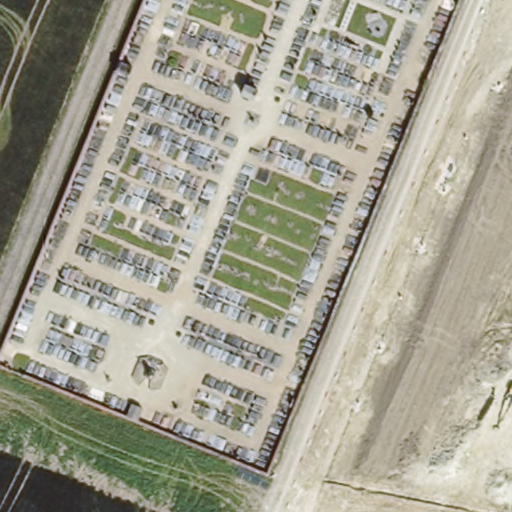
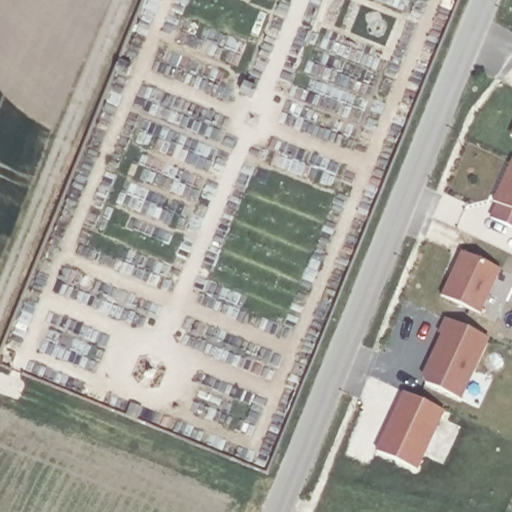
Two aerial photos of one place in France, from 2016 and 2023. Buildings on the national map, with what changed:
new [(512,135),(512,137),(511,137),(512,135)]
new [(497,205),(492,203),(512,159),(512,228),(491,218),(497,205)]
new [(462,251),(502,270),(482,316),(441,296),(462,251)]
new [(440,336),(437,334),(445,318),(490,337),(463,400),(425,385),(422,376),(440,336)]
new [(403,393),(445,411),(417,470),(377,451),(403,393)]

